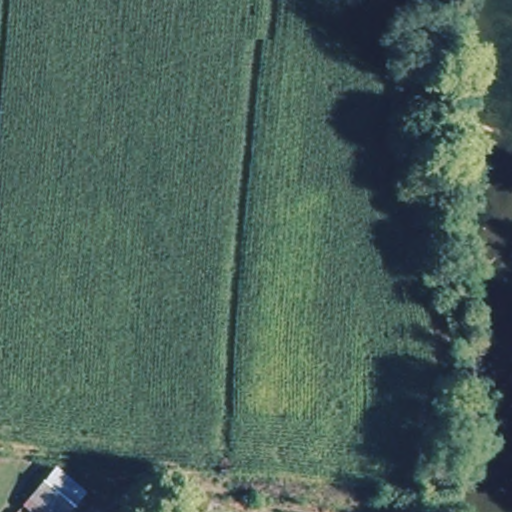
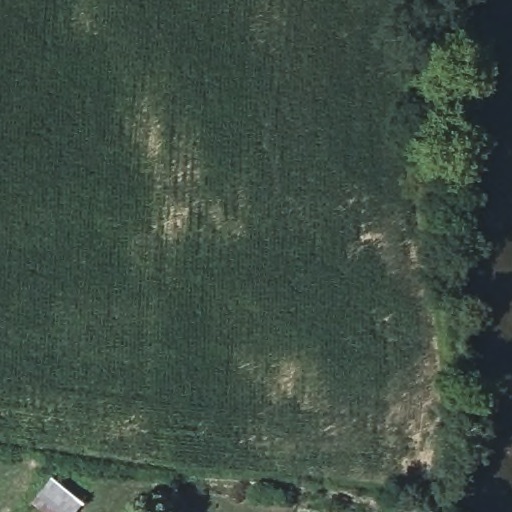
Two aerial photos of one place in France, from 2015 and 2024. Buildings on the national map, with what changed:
unchanged [(82,482),(69,500),(36,475),(55,456),(82,482)]

